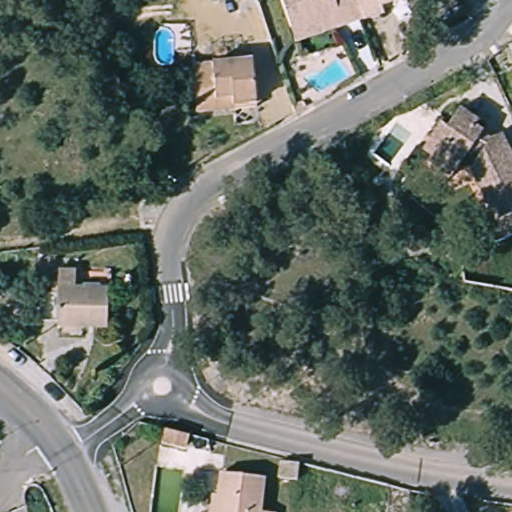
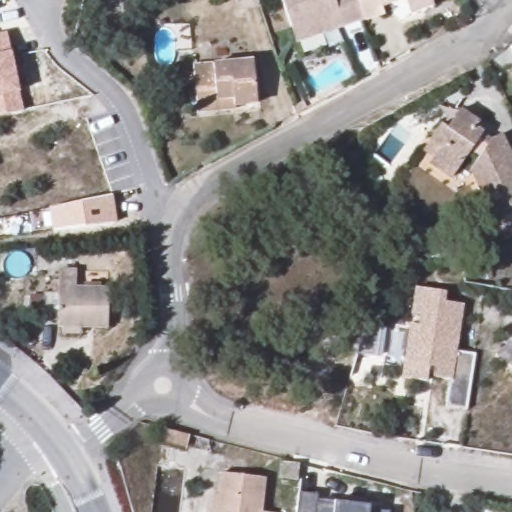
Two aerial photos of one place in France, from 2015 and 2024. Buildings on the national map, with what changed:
unchanged [(233,1),(232,0),(237,0),(233,1)]
unchanged [(288,31),(278,0),(353,0),(360,20),(339,27),(292,43),(288,31)]
unchanged [(406,16),(404,9),(402,2),(379,9),(382,17),(361,24),(360,20),(353,0),(429,0),(429,1),(431,7),(406,16)]
new [(0,115),(0,33),(7,31),(11,50),(20,91),(24,110),(0,115)]
unchanged [(251,59),(255,101),(232,103),(233,108),(197,111),(192,64),(251,59)]
unchanged [(512,62),(512,72),(508,64),(512,62)]
unchanged [(457,106),(477,121),(473,130),(485,140),(500,132),(507,150),(512,147),(512,212),(493,221),(468,167),(474,157),(466,152),(450,176),(426,161),(431,154),(421,148),(438,121),(445,125),(457,106)]
new [(52,229),(49,207),(113,194),(118,222),(52,229)]
unchanged [(62,333),(62,324),(55,324),(56,318),(42,319),(43,291),(57,291),(57,269),(75,270),(75,287),(107,287),(107,325),(81,325),(82,334),(62,333)]
new [(408,324),(417,325),(418,315),(410,314),(414,288),(443,292),(441,302),(460,305),(453,352),(473,355),(464,410),(444,407),(448,380),(430,377),(432,367),(426,366),(424,381),(400,378),(408,324)]
new [(511,337),(512,336),(512,339),(511,337)]
new [(512,366),(512,369),(511,368),(512,366)]
unchanged [(189,435),(187,445),(161,439),(164,428),(189,435)]
unchanged [(298,463),(296,480),(276,477),(278,460),(298,463)]
unchanged [(224,499),(225,477),(266,481),(263,512),(213,512),(215,497),(224,499)]
new [(319,493),(318,498),(334,501),(371,504),(370,508),(390,511),(390,512),(297,512),(300,491),(319,493)]

